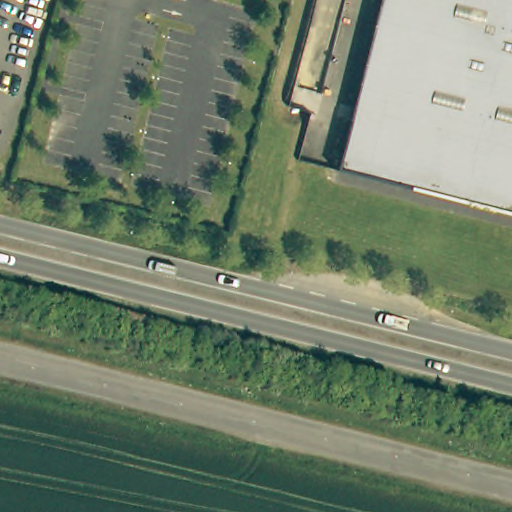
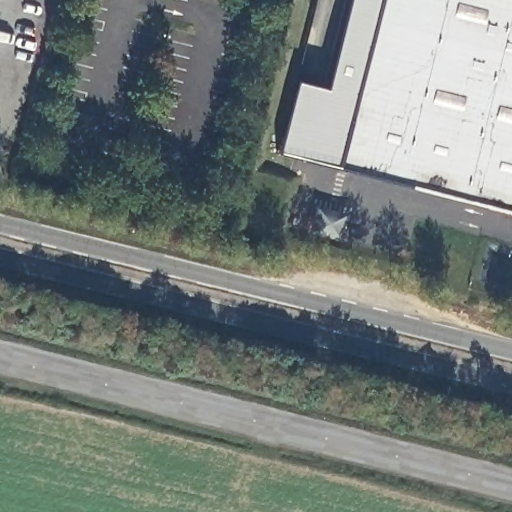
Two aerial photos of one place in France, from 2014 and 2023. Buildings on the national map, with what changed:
new [(379,16),(350,128),(339,170),(278,154),(296,82),(327,90),(348,0),(367,0),(364,12),(379,16)]
unchanged [(350,128),(379,16),(364,12),(367,0),(512,0),(512,169),(350,128)]
unchanged [(338,176),(350,128),(512,169),(512,219),(338,176)]

